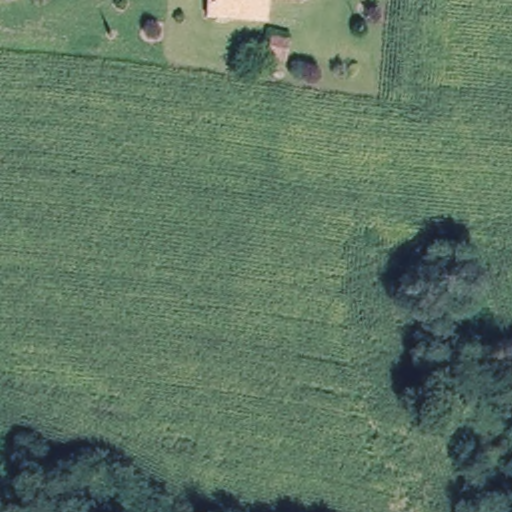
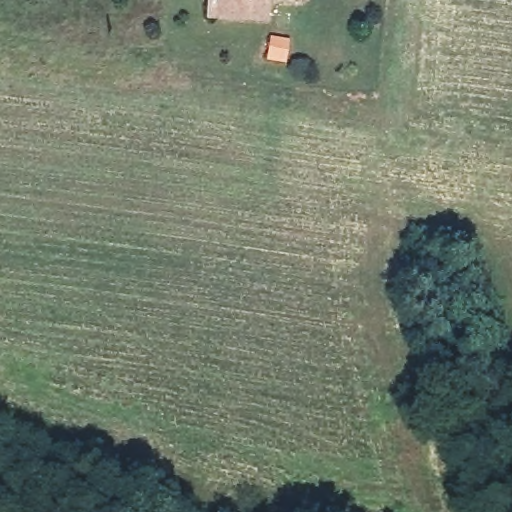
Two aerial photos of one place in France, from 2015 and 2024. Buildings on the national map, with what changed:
unchanged [(263,17),(210,15),(211,0),(264,0),(263,17)]
unchanged [(283,39),(283,58),(270,58),(270,39),(283,39)]

